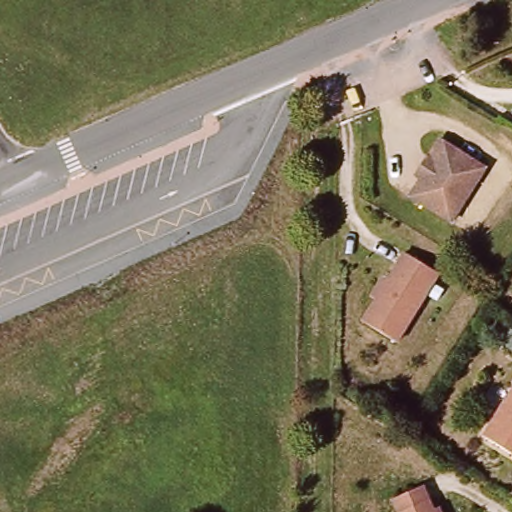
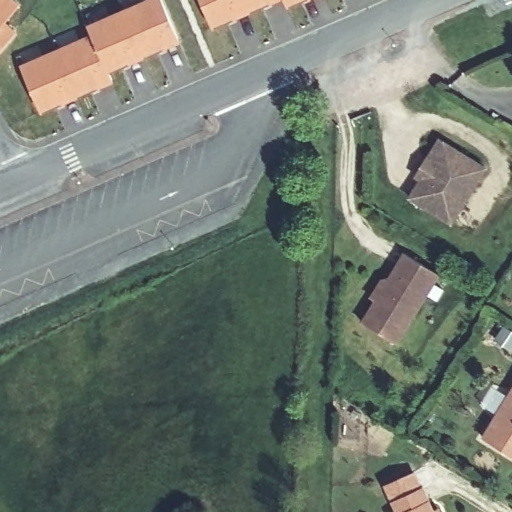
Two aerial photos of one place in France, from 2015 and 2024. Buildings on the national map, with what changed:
new [(16,30),(0,49),(0,0),(13,0),(19,5),(4,21),(16,30)]
new [(20,65),(92,34),(87,25),(145,0),(160,0),(179,42),(108,74),(113,83),(41,113),(20,65)]
new [(280,0),(212,29),(200,0),(280,0)]
new [(305,0),(288,7),(284,0),(305,0)]
unchanged [(481,167),(448,224),(406,199),(417,180),(411,176),(422,159),(435,140),(481,167)]
unchanged [(382,287),(382,280),(387,279),(402,255),(436,276),(395,344),(361,323),(382,287)]
unchanged [(482,440),(512,389),(512,458),(482,440)]
unchanged [(392,500),(422,488),(432,511),(437,510),(438,512),(397,512),(392,500)]

